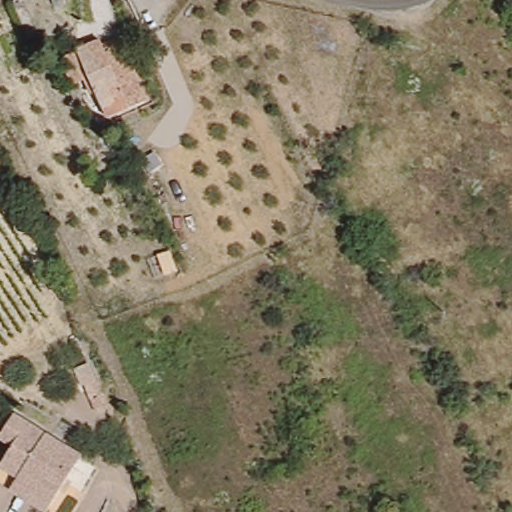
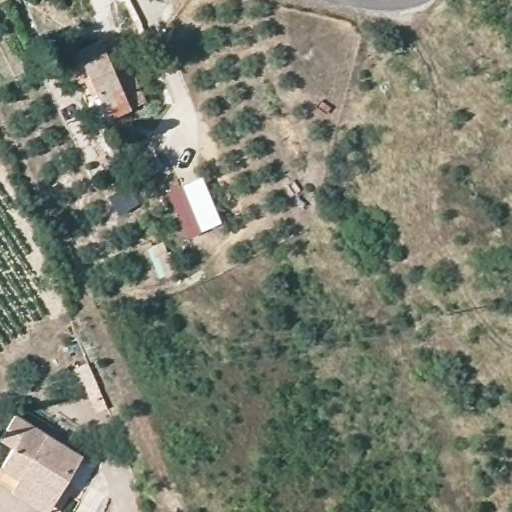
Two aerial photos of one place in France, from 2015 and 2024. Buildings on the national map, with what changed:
unchanged [(104,41),(119,34),(147,97),(108,115),(97,90),(91,92),(85,77),(72,82),(61,55),(78,47),(103,37),(104,41)]
new [(167,187),(204,174),(223,224),(186,237),(167,187)]
unchanged [(0,465),(3,461),(13,444),(0,436),(0,435),(15,411),(82,452),(53,499),(48,507),(0,478),(0,465)]

